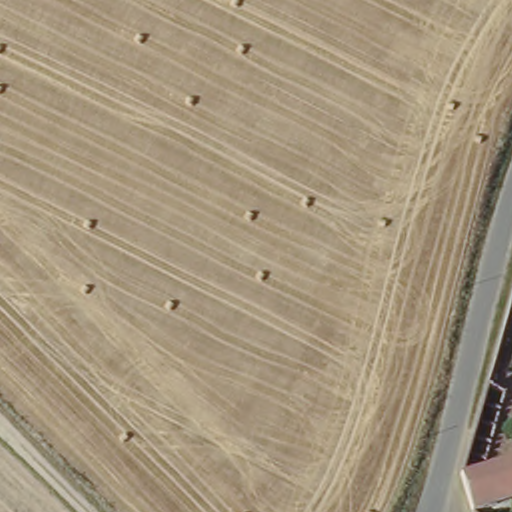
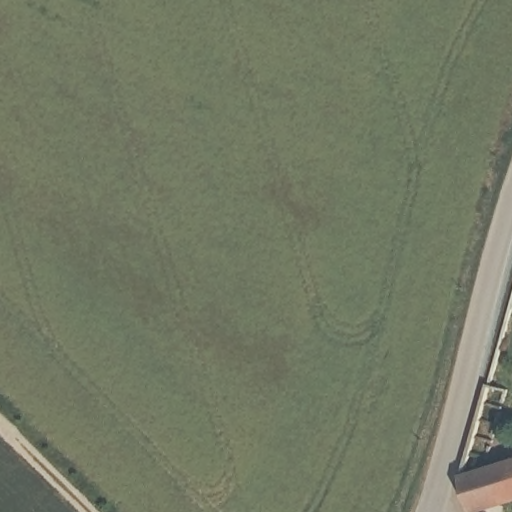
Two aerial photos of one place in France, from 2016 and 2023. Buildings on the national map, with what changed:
unchanged [(468,466),(496,383),(512,389),(512,394),(490,467),(512,462),(512,495),(454,509),(468,466)]

